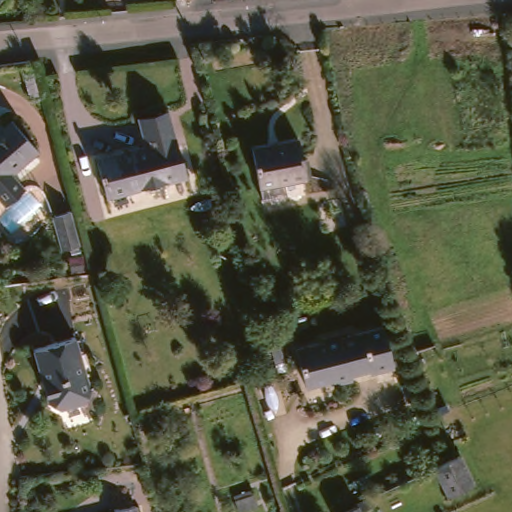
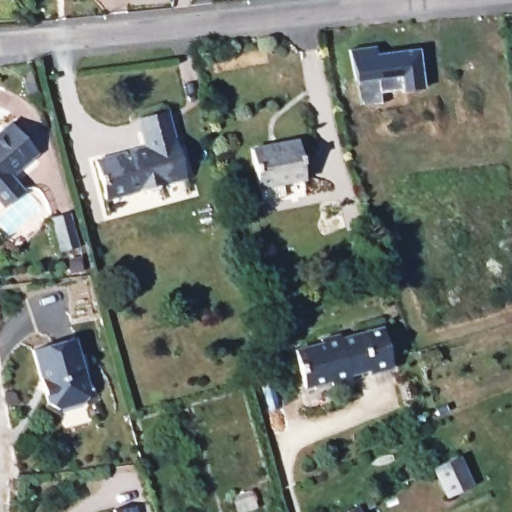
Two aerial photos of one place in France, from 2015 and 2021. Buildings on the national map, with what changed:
new [(423,87),(402,90),(381,91),(382,102),(362,105),(359,82),(354,82),(350,49),(375,46),(377,54),(418,49),(423,87)]
unchanged [(145,146),(142,131),(139,117),(167,110),(171,125),(182,176),(105,194),(96,157),(145,146)]
unchanged [(0,127),(11,117),(37,149),(10,173),(24,188),(5,205),(0,199),(0,127)]
unchanged [(303,174),(282,178),(283,192),(260,197),(251,145),(297,135),(303,174)]
unchanged [(59,254),(51,222),(72,216),(74,220),(81,250),(59,254)]
unchanged [(360,374),(345,379),(344,377),(316,386),(304,348),(330,340),(329,336),(347,331),(348,335),(367,328),(385,323),(397,362),(380,368),(378,366),(360,372),(360,374)]
unchanged [(44,348),(86,337),(99,391),(92,402),(67,408),(57,402),(55,395),(62,384),(51,377),(44,348)]
unchanged [(434,464),(436,463),(459,453),(472,485),(448,496),(434,464)]
unchanged [(358,507),(356,501),(367,496),(374,512),(349,512),(358,507)]
unchanged [(111,507),(136,504),(137,512),(111,512),(111,507)]

